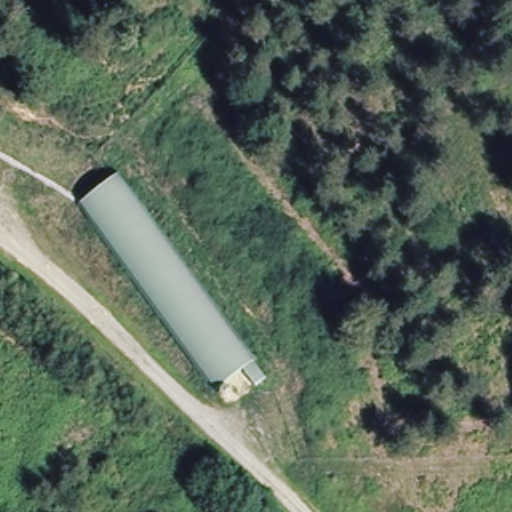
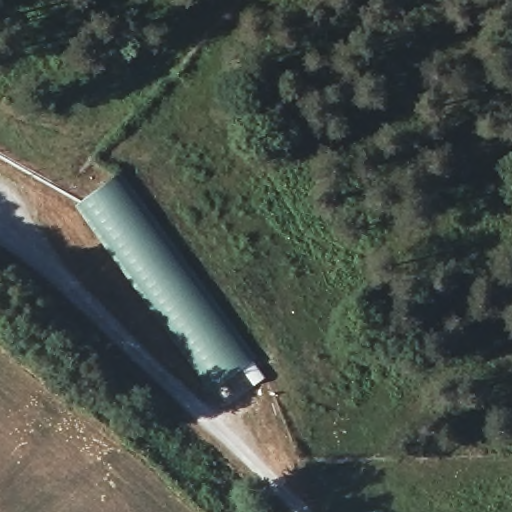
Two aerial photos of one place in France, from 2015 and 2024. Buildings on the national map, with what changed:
unchanged [(82,199),(126,174),(259,366),(218,389),(82,199)]

